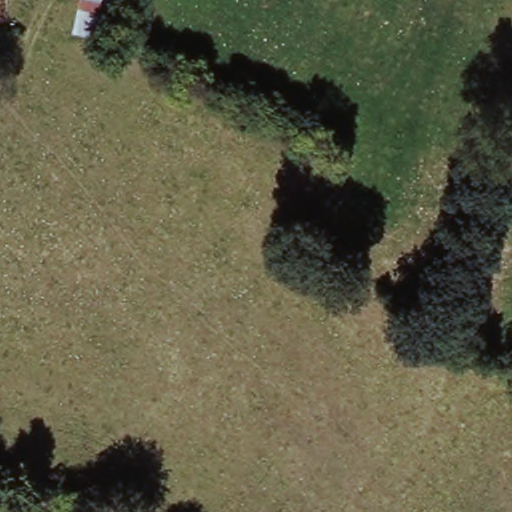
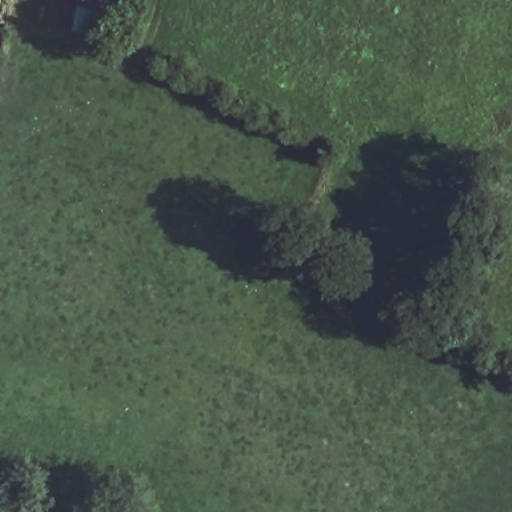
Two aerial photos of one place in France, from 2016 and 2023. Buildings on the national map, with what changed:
unchanged [(98,0),(131,0),(130,7),(98,0)]
unchanged [(83,13),(126,22),(120,45),(78,36),(83,13)]

